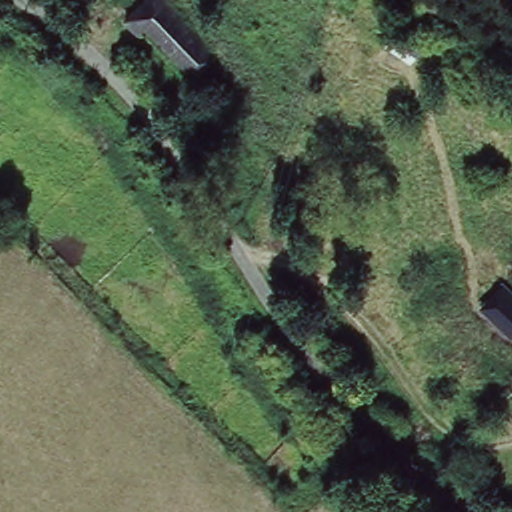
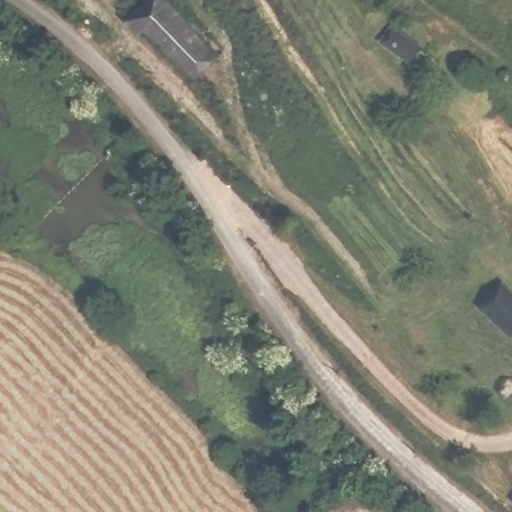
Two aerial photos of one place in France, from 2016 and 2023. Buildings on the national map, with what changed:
unchanged [(212,43),(195,65),(158,35),(151,44),(127,24),(148,0),(158,0),(212,43)]
unchanged [(393,42),(378,56),(363,41),(375,27),(393,42)]
unchanged [(512,332),(480,310),(497,287),(512,299),(512,332)]

